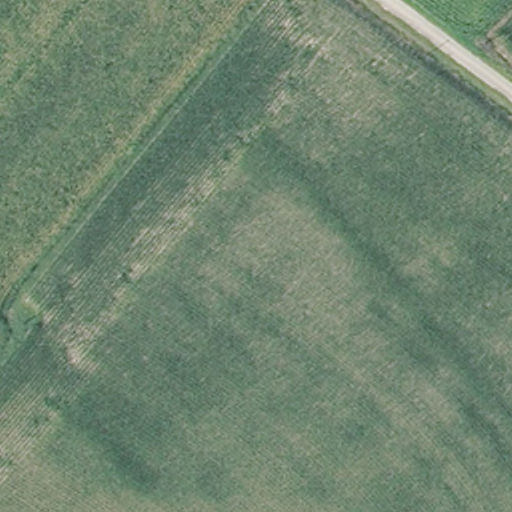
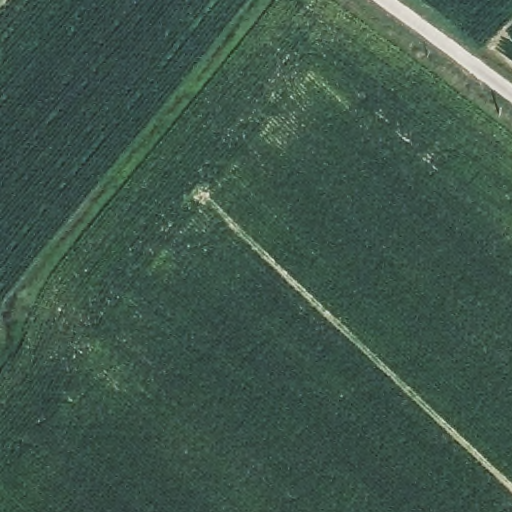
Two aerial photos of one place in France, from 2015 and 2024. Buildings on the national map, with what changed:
[]

